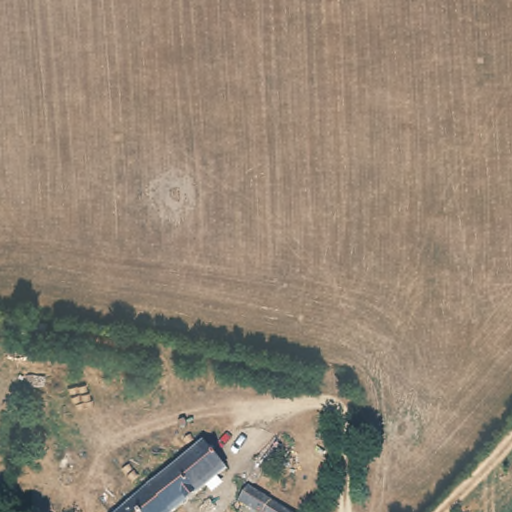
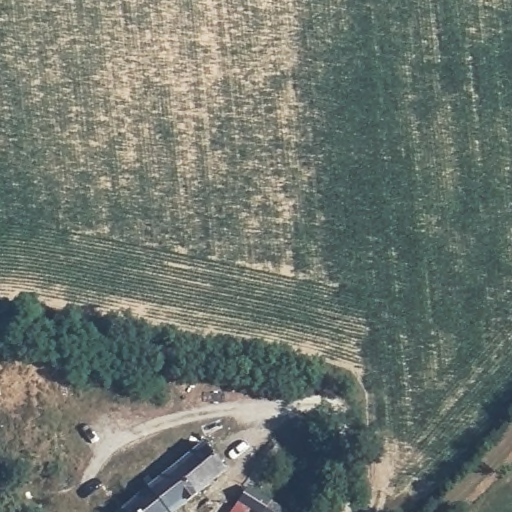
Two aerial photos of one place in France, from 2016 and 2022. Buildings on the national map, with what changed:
unchanged [(230,477),(184,512),(125,512),(162,484),(207,450),(230,477)]
unchanged [(242,512),(237,508),(247,495),(271,512),(242,512)]

